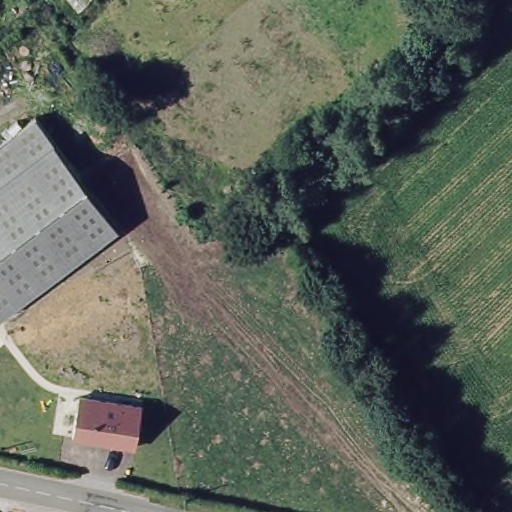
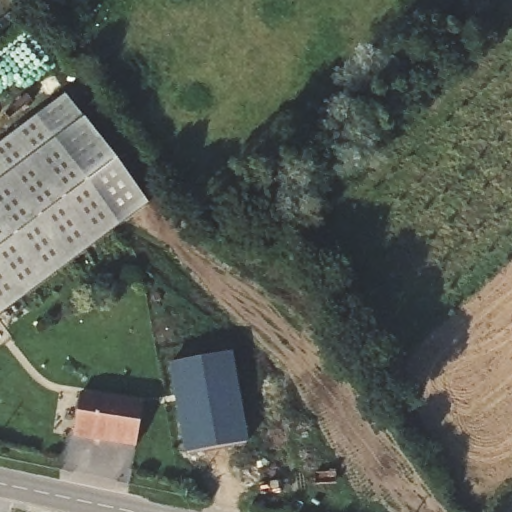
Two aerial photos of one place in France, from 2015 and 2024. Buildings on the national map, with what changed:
new [(55,141),(37,117),(64,97),(82,121),(147,207),(124,227),(55,141)]
unchanged [(37,117),(55,141),(124,227),(0,319),(0,146),(37,117)]
new [(247,444),(185,456),(169,365),(231,353),(247,444)]
unchanged [(143,406),(137,446),(72,436),(80,396),(143,406)]

